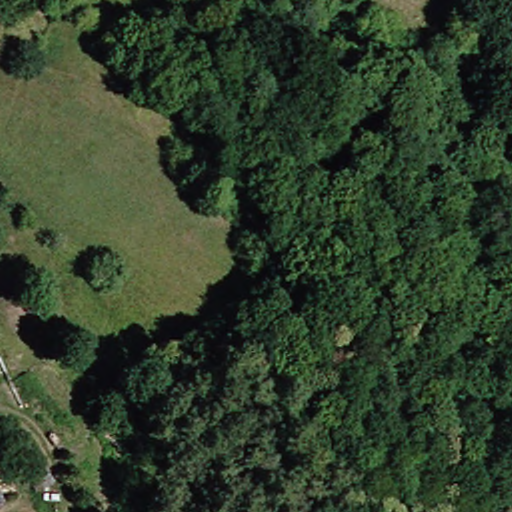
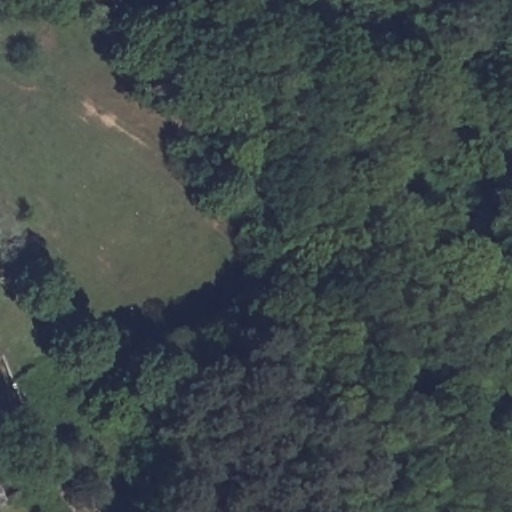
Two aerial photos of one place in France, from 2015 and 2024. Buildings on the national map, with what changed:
unchanged [(471,284),(452,256),(463,244),(482,274),(471,284)]

